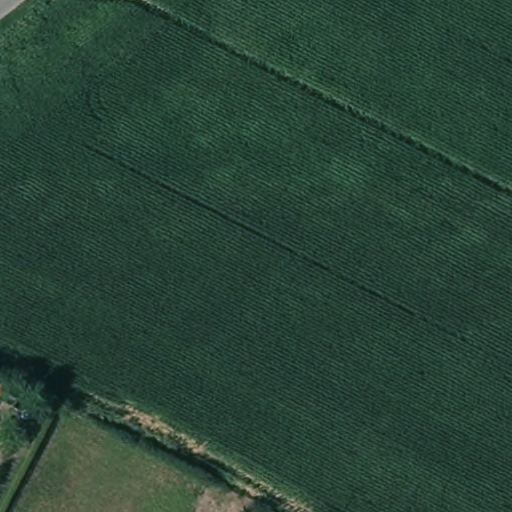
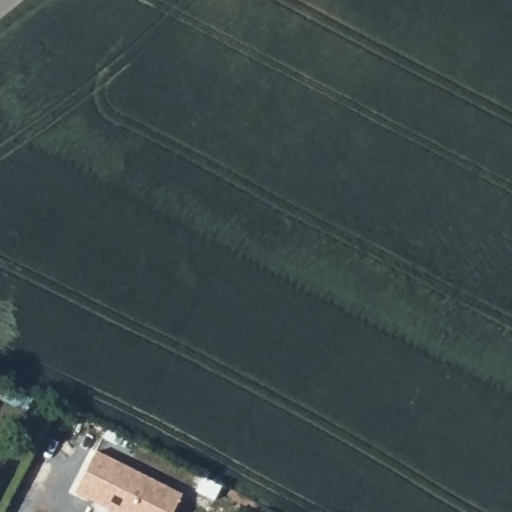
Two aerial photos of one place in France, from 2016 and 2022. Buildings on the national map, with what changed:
new [(173,512),(113,512),(74,492),(97,450),(182,494),(173,512)]

